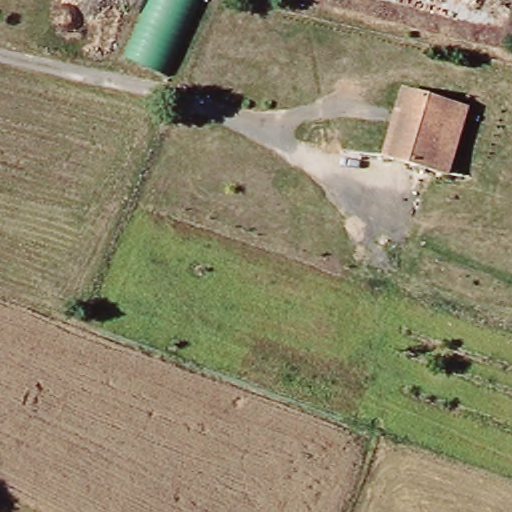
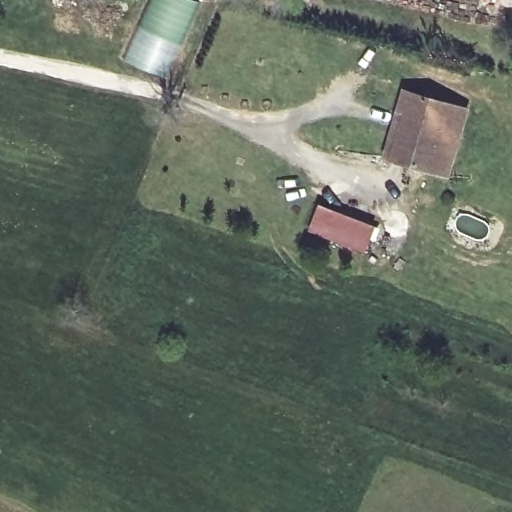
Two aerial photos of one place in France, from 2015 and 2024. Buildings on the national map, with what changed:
unchanged [(151,0),(188,0),(199,4),(168,80),(127,61),(151,0)]
unchanged [(390,151),(410,109),(404,106),(414,86),(458,107),(428,169),(390,151)]
unchanged [(443,177),(428,169),(458,107),(474,114),(443,177)]
new [(376,225),(366,252),(310,230),(320,204),(376,225)]

